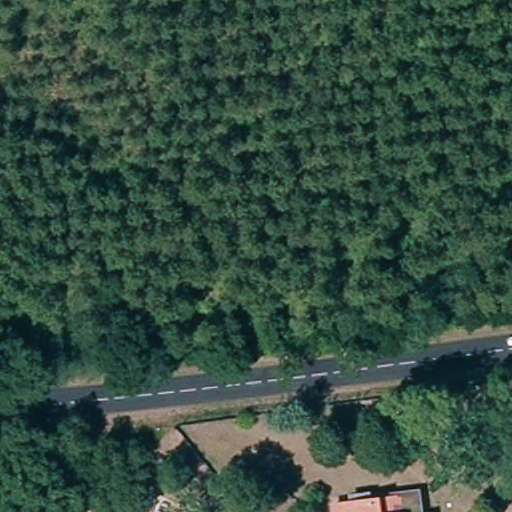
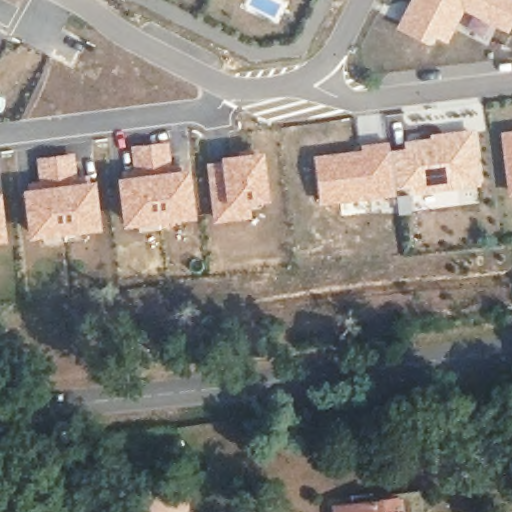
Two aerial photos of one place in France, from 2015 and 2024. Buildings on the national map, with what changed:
new [(512,25),(508,32),(465,10),(448,44),(431,34),(426,41),(395,27),(410,0),(512,0),(512,25)]
new [(390,141),(391,149),(405,147),(404,140),(430,137),(430,133),(475,128),(481,186),(411,195),(410,186),(396,187),(396,195),(321,205),(314,155),(362,149),(361,144),(390,141)]
new [(501,131),(512,130),(512,197),(509,197),(501,131)]
new [(169,140),(172,169),(132,173),(129,145),(169,140)]
new [(220,160),(219,155),(263,149),(270,202),(250,206),(252,218),(212,223),(205,162),(220,160)]
new [(75,151),(79,180),(37,184),(35,156),(75,151)]
new [(132,173),(172,169),(189,166),(195,219),(121,228),(116,175),(132,173)]
new [(37,184),(79,180),(95,179),(100,230),(27,238),(21,186),(37,184)]
new [(6,241),(0,242),(0,189),(6,241)]
new [(185,502),(189,512),(148,512),(157,491),(185,502)]
new [(422,491),(425,512),(333,512),(332,504),(383,497),(422,491)]
demolished [(396,499),(397,512),(332,512),(331,505),(396,499)]

